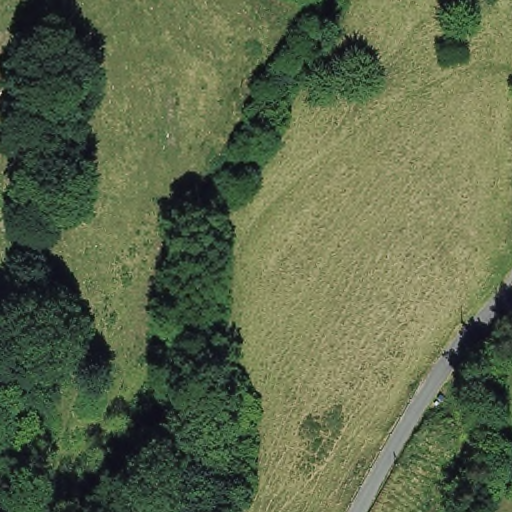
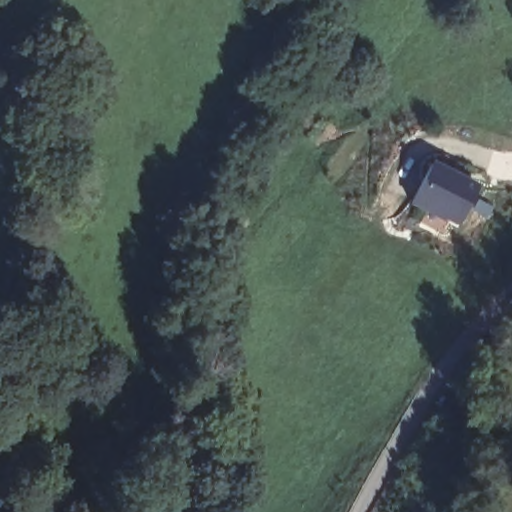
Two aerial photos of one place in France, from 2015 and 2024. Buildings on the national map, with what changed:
new [(428,158),(480,181),(460,227),(410,203),(428,158)]

